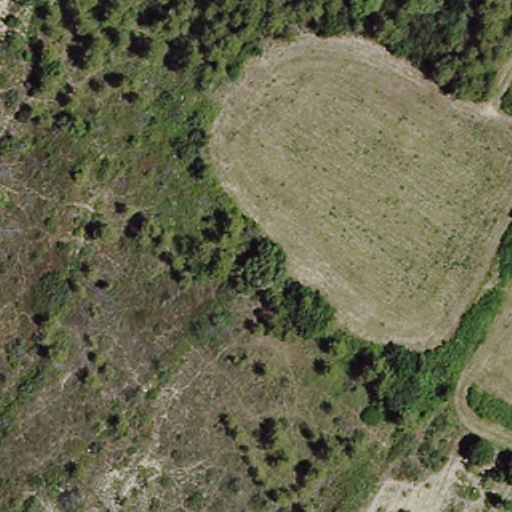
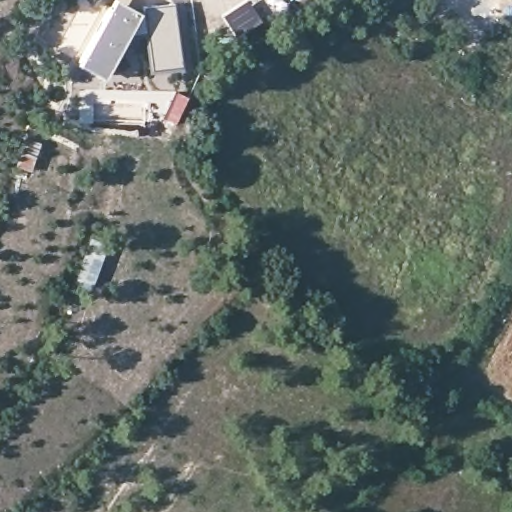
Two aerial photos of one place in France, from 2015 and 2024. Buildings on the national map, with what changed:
new [(91,3),(90,0),(94,0),(91,3)]
new [(110,8),(112,2),(135,13),(143,12),(143,7),(174,3),(182,65),(152,70),(147,33),(127,35),(106,77),(85,62),(110,8)]

